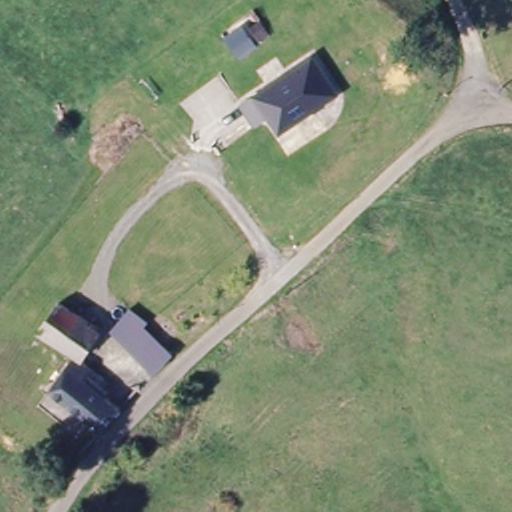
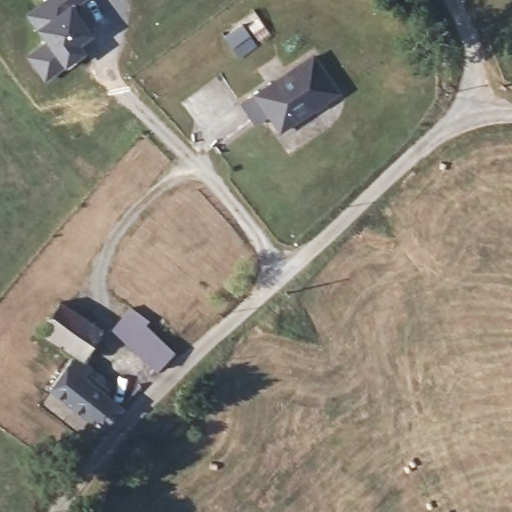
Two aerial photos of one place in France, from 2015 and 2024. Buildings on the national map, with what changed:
new [(68,3),(75,12),(87,29),(53,54),(59,62),(39,76),(22,54),(42,40),(21,12),(38,0),(72,0),(68,3)]
unchanged [(320,53),(345,89),(332,98),(333,100),(324,106),(323,105),(304,118),(301,115),(287,125),(274,107),(271,109),(261,94),(320,53)]
unchanged [(86,367),(36,341),(58,304),(106,328),(86,367)]
unchanged [(160,375),(148,364),(152,356),(123,328),(135,313),(153,329),(149,333),(176,361),(160,375)]
unchanged [(105,436),(52,397),(75,365),(84,370),(91,374),(85,386),(103,399),(120,384),(135,402),(105,436)]

